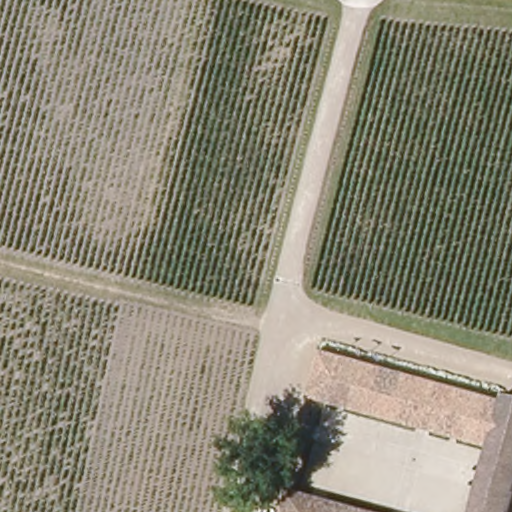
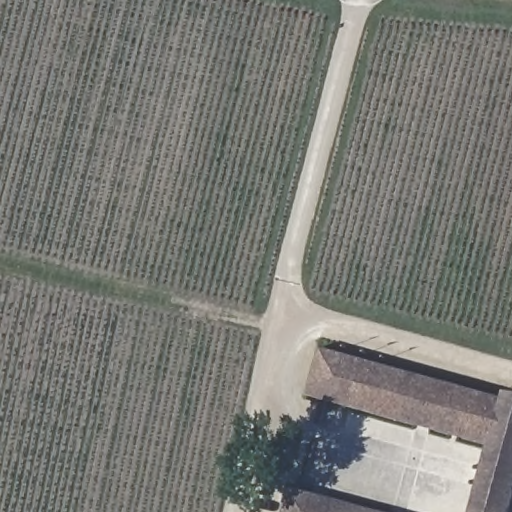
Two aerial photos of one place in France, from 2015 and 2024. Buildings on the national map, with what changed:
unchanged [(504,398),(489,447),(308,398),(322,346),(504,396),(504,398)]
unchanged [(504,398),(504,396),(512,397),(512,498),(508,512),(470,512),(489,447),(504,398)]
unchanged [(315,498),(368,512),(284,512),(288,492),(315,498)]

